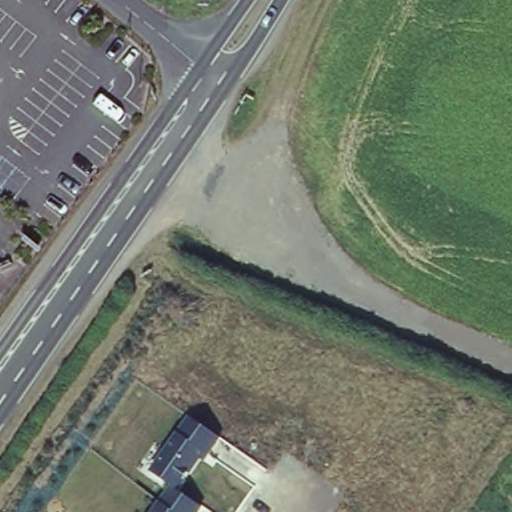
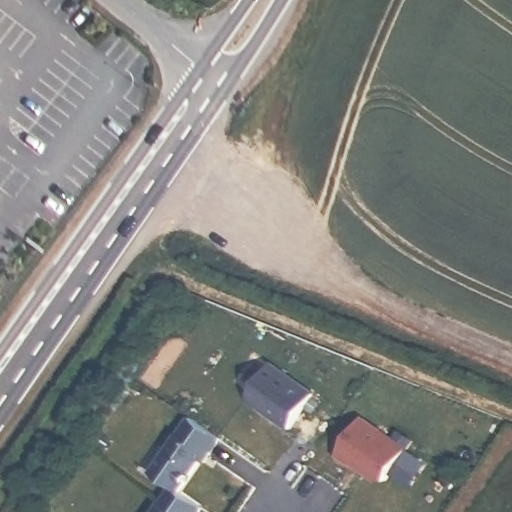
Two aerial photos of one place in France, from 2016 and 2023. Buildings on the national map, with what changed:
new [(271,368),(313,397),(293,428),(249,400),(271,368)]
new [(356,432),(342,421),(353,405),(409,439),(383,479),(339,455),(356,432)]
unchanged [(202,507),(199,512),(153,512),(169,486),(150,472),(189,417),(221,440),(182,491),(202,507)]

